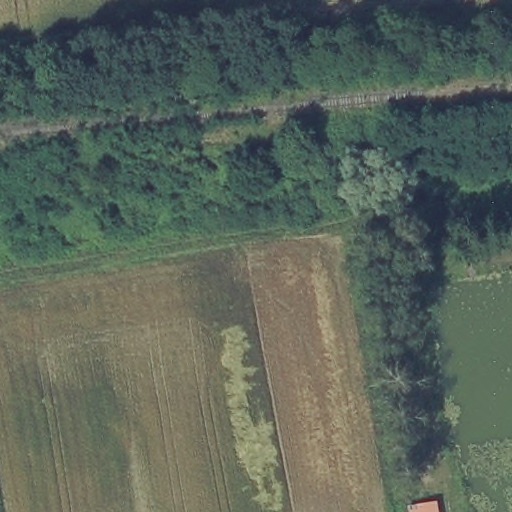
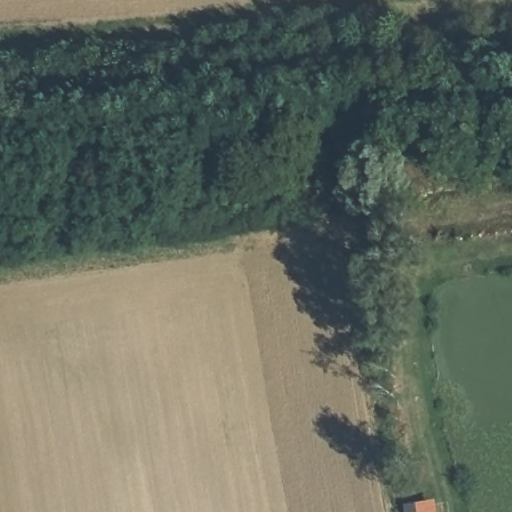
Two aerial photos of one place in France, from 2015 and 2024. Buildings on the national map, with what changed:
unchanged [(437,512),(434,512),(436,511),(437,512)]

